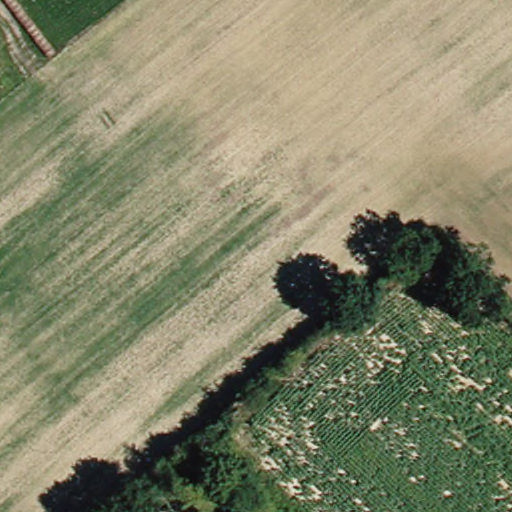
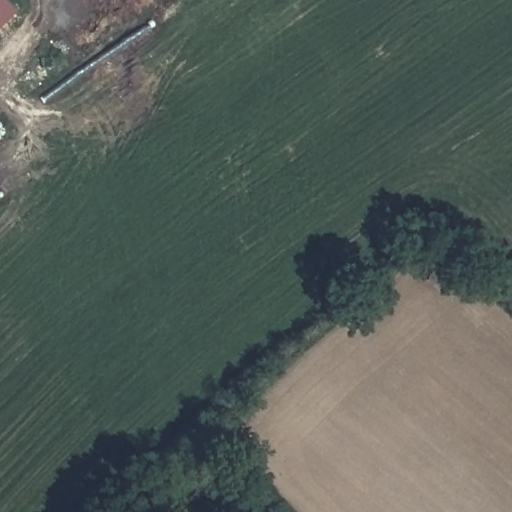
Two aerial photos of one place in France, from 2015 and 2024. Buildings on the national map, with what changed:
new [(14,12),(0,26),(0,0),(2,0),(14,12)]

